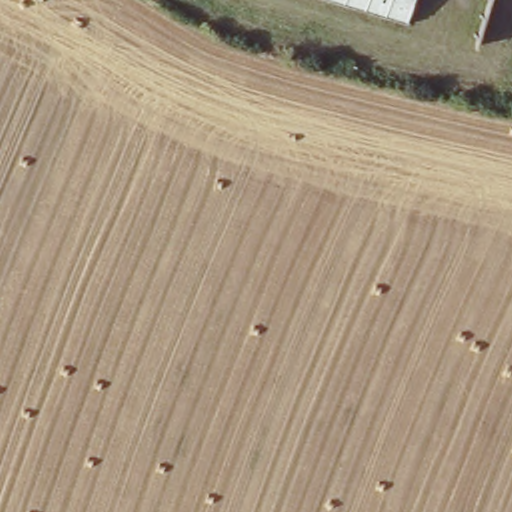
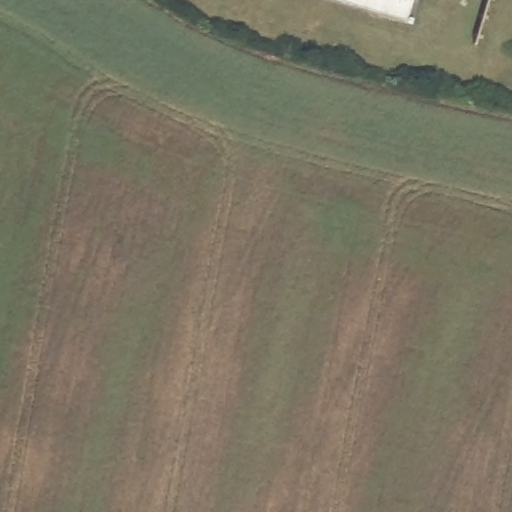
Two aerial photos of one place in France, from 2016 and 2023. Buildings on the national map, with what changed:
unchanged [(342,0),(420,0),(414,22),(342,0)]

